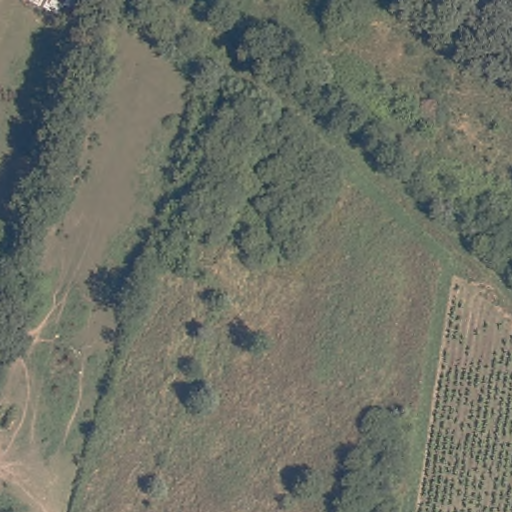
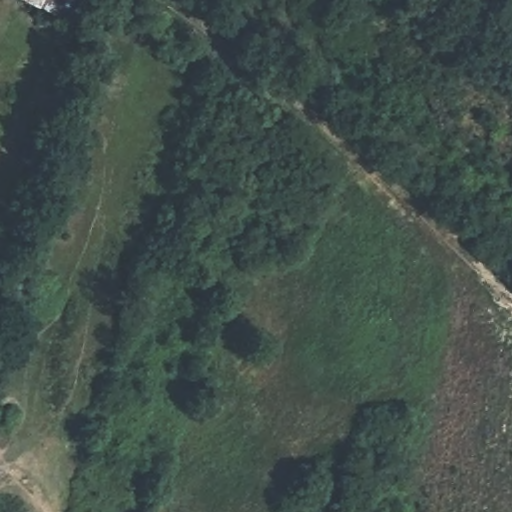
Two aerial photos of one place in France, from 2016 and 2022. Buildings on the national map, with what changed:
unchanged [(75,0),(90,0),(87,5),(75,0)]

